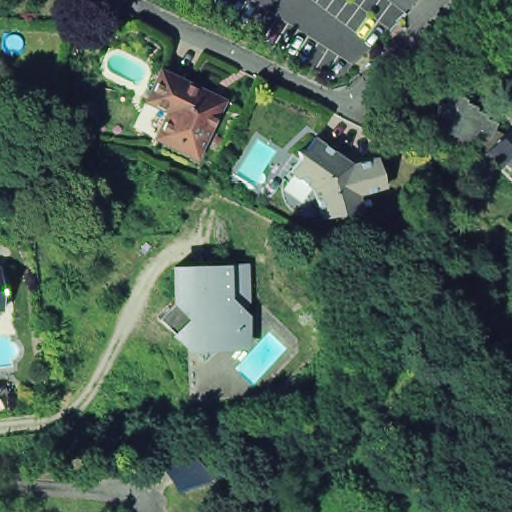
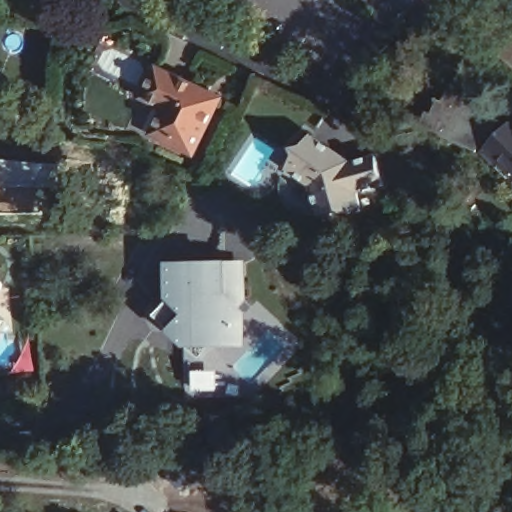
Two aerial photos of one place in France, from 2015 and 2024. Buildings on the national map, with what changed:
unchanged [(223,99),(195,155),(153,135),(166,109),(144,99),(158,67),(223,99)]
unchanged [(429,112),(434,115),(440,101),(445,104),(450,90),(467,97),(466,100),(477,105),(476,109),(487,114),(486,116),(497,121),(494,129),(512,137),(512,180),(493,161),(497,157),(480,149),(478,152),(422,126),(429,112)]
unchanged [(299,156),(297,150),(305,147),(313,136),(339,154),(338,155),(341,166),(376,156),(385,185),(358,193),(362,208),(346,212),(341,210),(320,215),(312,186),(290,170),(299,156)]
unchanged [(55,156),(50,183),(18,177),(23,150),(55,156)]
unchanged [(170,302),(174,297),(173,265),(226,263),(227,295),(245,313),(238,320),(242,324),(233,333),(230,330),(202,358),(170,328),(156,315),(170,302)]
unchanged [(13,331),(0,333),(0,306),(0,290),(10,290),(13,331)]
unchanged [(175,432),(175,433),(212,477),(211,477),(177,487),(145,436),(145,435),(175,432)]

